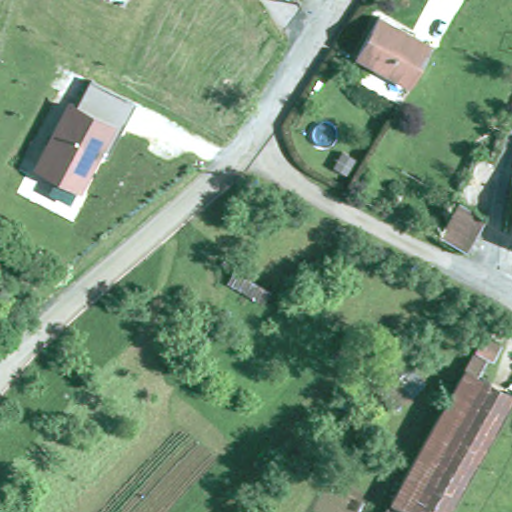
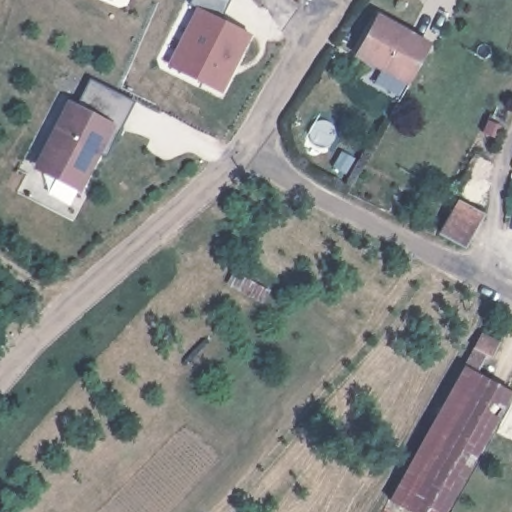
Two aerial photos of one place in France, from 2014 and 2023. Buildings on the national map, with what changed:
new [(189,5),(192,0),(230,0),(222,17),(253,34),(223,93),(168,66),(196,9),(189,5)]
unchanged [(412,84),(360,53),(381,15),(434,44),(412,84)]
new [(134,101),(107,157),(100,154),(115,124),(78,104),(90,79),(134,101)]
unchanged [(34,166),(68,99),(115,124),(83,190),(34,166)]
unchanged [(447,234),(464,202),(489,215),(472,247),(447,234)]
unchanged [(396,502),(469,368),(479,348),(486,336),(501,344),(494,356),(491,354),(481,374),(512,390),(512,397),(449,512),(414,512),(396,502)]

